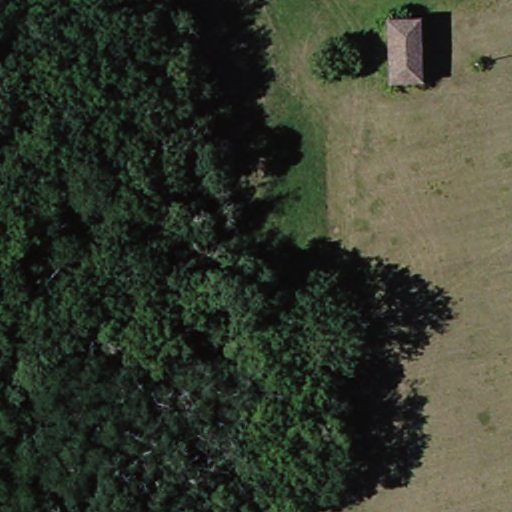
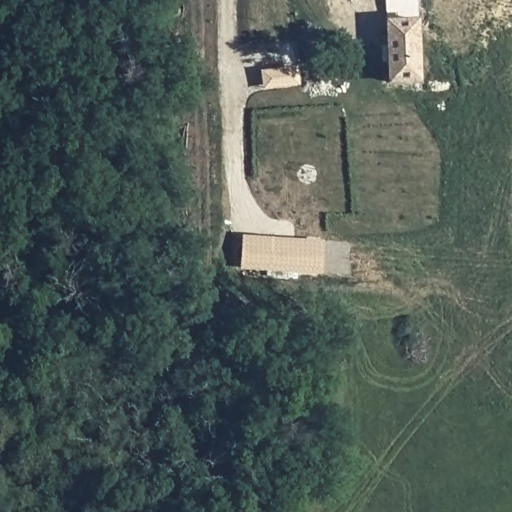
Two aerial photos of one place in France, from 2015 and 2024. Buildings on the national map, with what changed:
new [(383,27),(383,0),(414,0),(411,24),(383,27)]
unchanged [(383,27),(411,24),(415,89),(386,90),(383,27)]
new [(323,274),(240,269),(242,235),(325,240),(323,274)]

